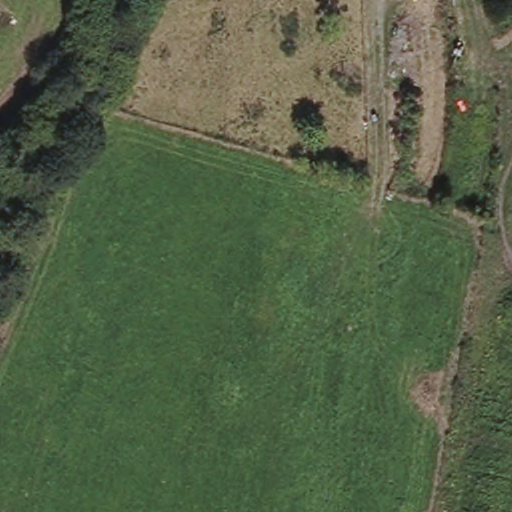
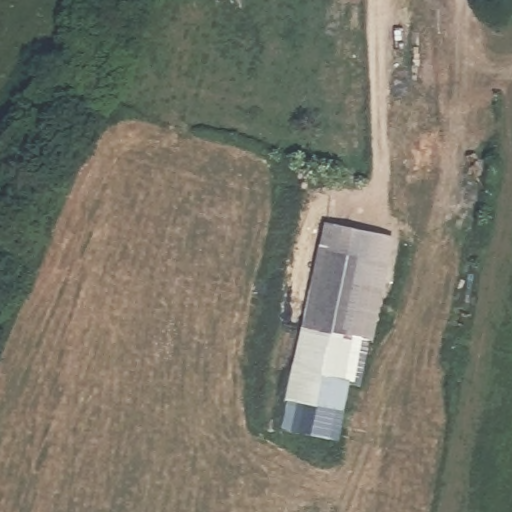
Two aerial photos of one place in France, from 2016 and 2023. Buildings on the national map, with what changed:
new [(364,383),(351,380),(342,417),(288,407),(321,223),(394,237),(364,383)]

